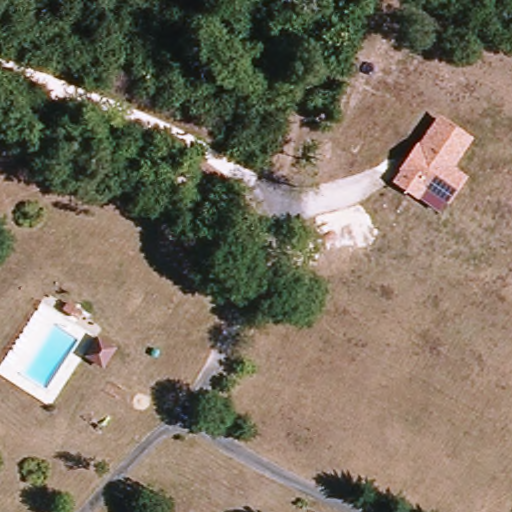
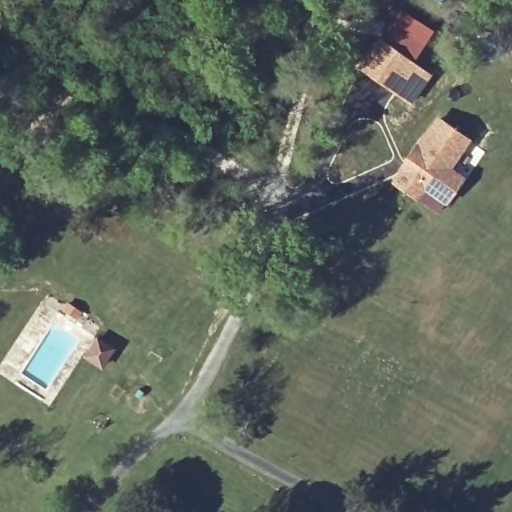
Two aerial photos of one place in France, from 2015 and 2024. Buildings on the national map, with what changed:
new [(422,47),(412,62),(432,75),(411,104),(360,67),(391,25),(422,47)]
unchanged [(438,117),(473,140),(456,168),(468,178),(450,205),(426,190),(418,201),(393,184),(438,117)]

